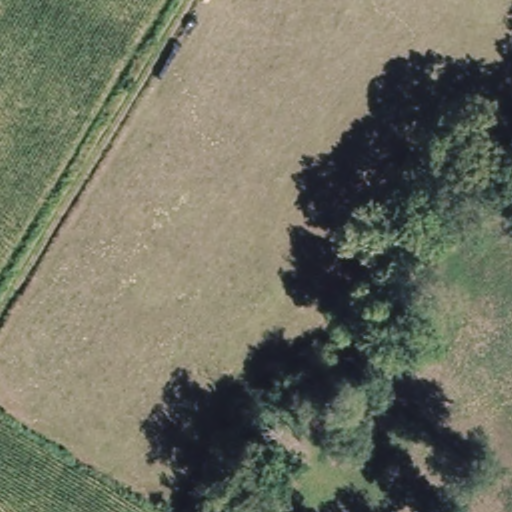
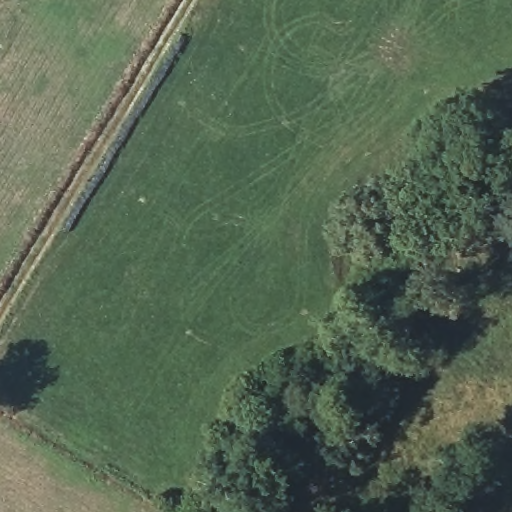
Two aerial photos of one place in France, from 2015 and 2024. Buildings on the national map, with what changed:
[]

